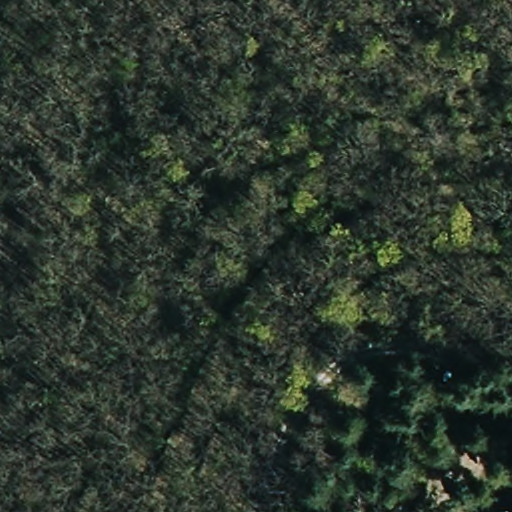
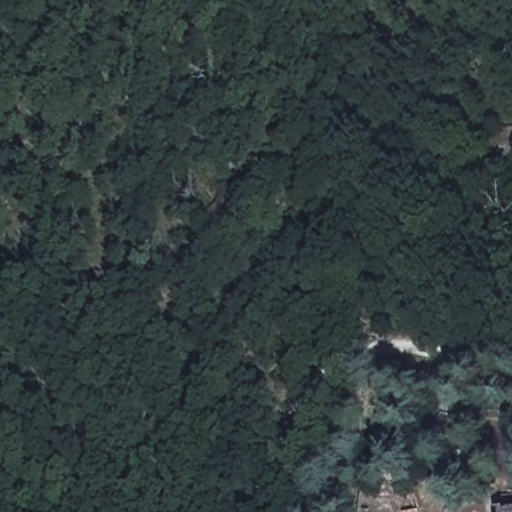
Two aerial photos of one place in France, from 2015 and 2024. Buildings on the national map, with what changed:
unchanged [(512,508),(512,512),(503,512),(503,510),(512,508)]

